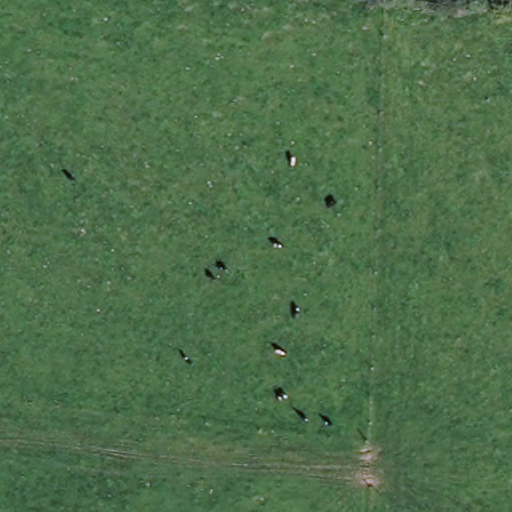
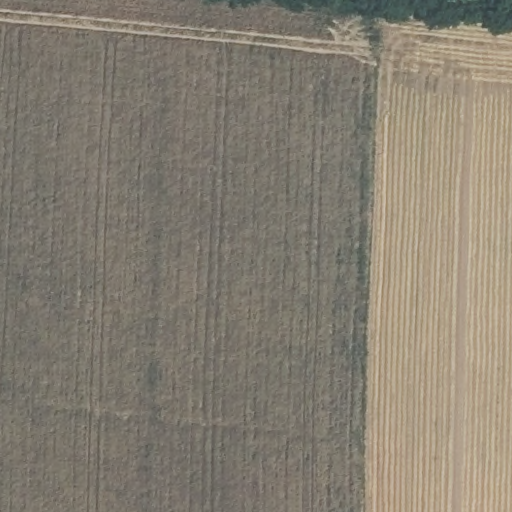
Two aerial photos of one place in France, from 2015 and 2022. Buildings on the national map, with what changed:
[]

